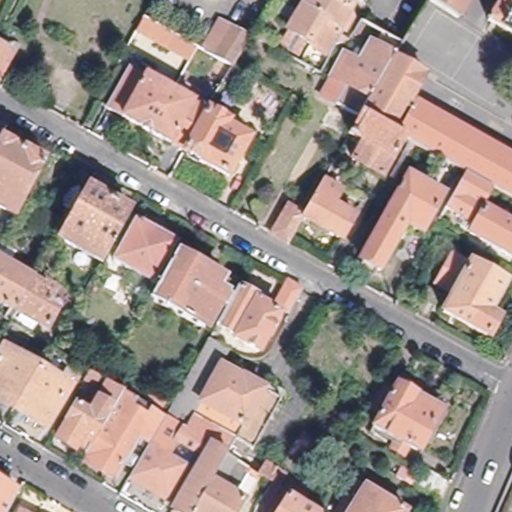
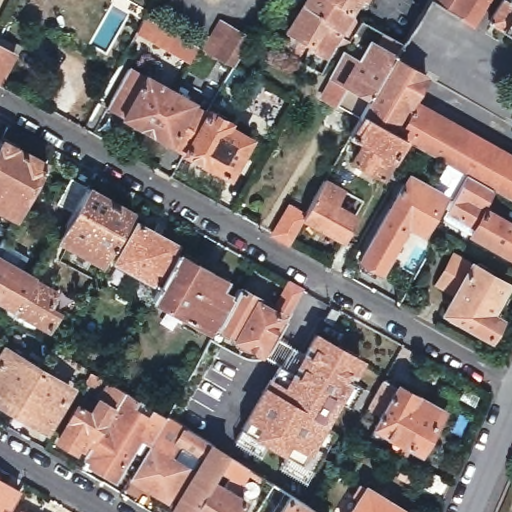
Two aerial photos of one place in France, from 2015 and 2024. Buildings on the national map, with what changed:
unchanged [(350,7),(344,4),(335,20),(338,27),(326,47),(333,52),(322,72),(278,45),(305,0),(355,0),(350,7)]
unchanged [(459,11),(440,0),(465,0),(459,11)]
unchanged [(496,21),(509,0),(512,0),(512,31),(496,21)]
unchanged [(373,22),(379,25),(372,38),(365,35),(373,22)]
unchanged [(212,52),(229,24),(248,35),(231,63),(212,52)]
unchanged [(322,92),(346,50),(360,58),(372,39),(380,44),(387,31),(402,40),(394,54),(361,109),(358,114),(322,92)]
unchanged [(15,60),(10,57),(0,74),(0,42),(19,52),(15,60)]
unchanged [(424,72),(408,100),(412,101),(413,100),(487,140),(510,153),(492,182),(465,167),(414,139),(403,132),(361,109),(394,54),(424,72)]
unchanged [(114,109),(138,67),(200,104),(196,110),(211,117),(190,152),(114,109)]
unchanged [(403,132),(381,170),(352,154),(363,135),(350,127),(358,114),(361,109),(403,132)]
unchanged [(211,117),(214,112),(235,125),(233,127),(257,141),(235,178),(190,152),(211,117)]
unchanged [(25,155),(26,154),(45,164),(16,216),(0,207),(0,142),(1,141),(25,155)]
unchanged [(512,154),(512,194),(492,182),(510,153),(512,154)]
unchanged [(492,182),(481,202),(512,220),(512,253),(470,229),(475,220),(445,202),(465,167),(492,182)]
unchanged [(404,222),(377,266),(357,255),(407,171),(442,193),(419,231),(404,222)]
unchanged [(60,234),(76,205),(60,196),(73,172),(90,182),(89,184),(132,209),(104,259),(60,234)]
unchanged [(285,205),(300,215),(318,184),(338,196),(331,210),(350,221),(338,240),(298,217),(283,242),(268,234),(285,205)]
unchanged [(158,282),(115,258),(138,217),(176,239),(165,259),(170,261),(158,282)]
unchanged [(23,249),(15,262),(40,277),(61,290),(53,303),(61,307),(51,322),(34,312),(26,325),(16,319),(9,315),(16,302),(0,293),(0,250),(6,239),(23,249)]
unchanged [(226,305),(217,300),(204,323),(151,294),(158,282),(170,261),(177,249),(218,271),(229,278),(224,287),(233,292),(226,305)]
unchanged [(500,311),(488,333),(447,308),(458,290),(441,280),(457,253),(507,281),(492,307),(500,311)]
unchanged [(276,299),(289,275),(303,283),(291,307),(276,299)]
unchanged [(261,293),(259,296),(281,309),(260,346),(236,332),(238,330),(218,318),(226,305),(233,292),(239,281),(261,293)]
unchanged [(74,325),(98,339),(84,363),(61,350),(74,325)]
new [(284,381),(313,329),(364,358),(310,452),(290,441),(282,454),(251,435),(258,424),(244,415),(265,382),(271,374),(284,381)]
unchanged [(0,395),(0,355),(5,347),(36,366),(14,403),(0,395)]
demolished [(245,420),(244,420),(205,399),(224,364),(240,373),(241,371),(266,385),(245,420)]
unchanged [(101,371),(94,383),(83,376),(90,365),(101,371)]
unchanged [(67,385),(46,422),(14,403),(36,366),(67,385)]
unchanged [(446,401),(441,410),(443,411),(426,441),(418,437),(413,446),(400,439),(405,430),(381,416),(388,404),(373,395),(388,370),(446,401)]
unchanged [(89,445),(76,437),(72,444),(56,434),(67,415),(65,413),(74,398),(89,407),(106,375),(124,385),(89,445)]
unchanged [(141,430),(116,471),(85,452),(89,445),(124,385),(166,411),(153,436),(141,430)]
unchanged [(212,440),(187,483),(178,478),(170,492),(131,470),(153,436),(166,411),(212,440)]
unchanged [(235,455),(230,462),(221,456),(210,476),(189,510),(188,512),(185,512),(175,505),(187,483),(212,440),(225,449),(227,450),(235,455)]
unchanged [(417,473),(400,464),(406,452),(423,461),(417,473)]
unchanged [(422,472),(427,463),(430,457),(455,470),(447,485),(422,472)]
demolished [(261,471),(268,460),(287,470),(280,483),(279,483),(273,479),(261,471)]
unchanged [(244,496),(234,512),(192,512),(189,510),(210,476),(244,496)]
unchanged [(355,491),(362,480),(408,508),(405,512),(350,512),(361,495),(355,491)]
unchanged [(0,512),(0,483),(20,495),(10,512),(0,512)]
unchanged [(311,503),(326,512),(275,512),(289,489),(311,503)]

